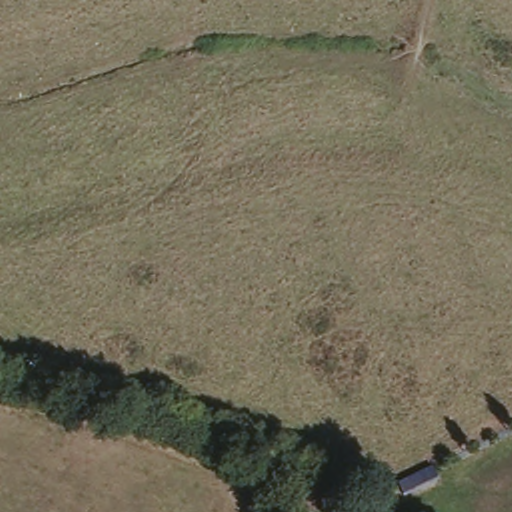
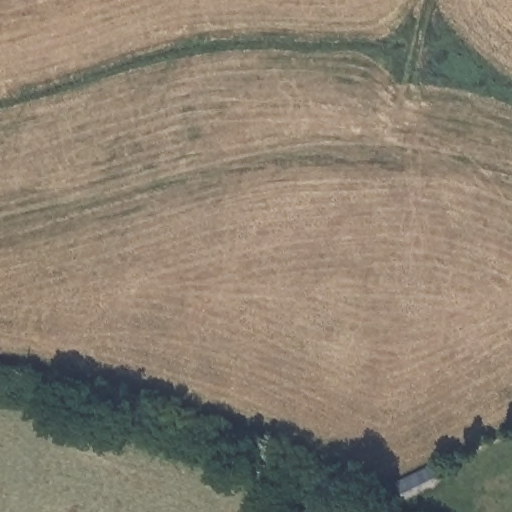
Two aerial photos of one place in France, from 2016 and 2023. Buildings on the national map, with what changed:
[]

